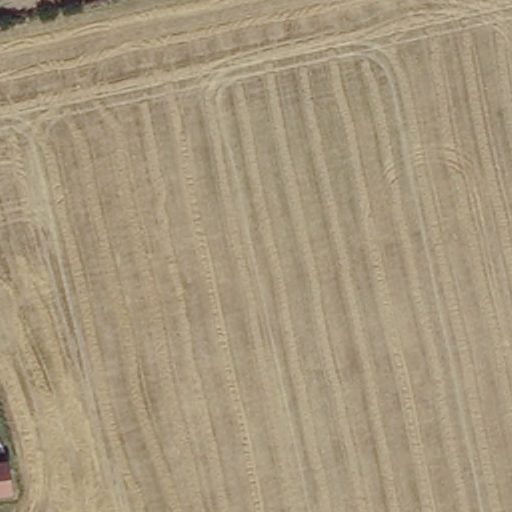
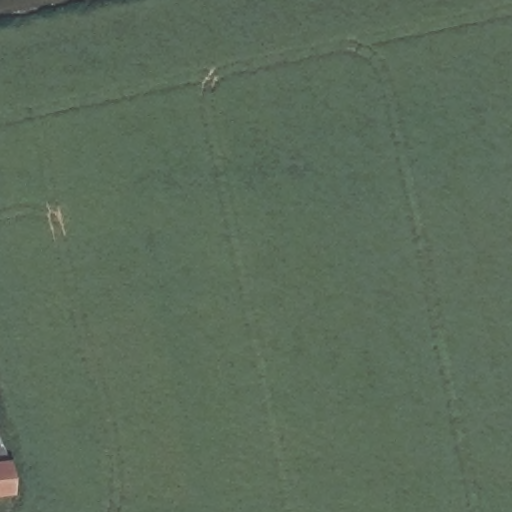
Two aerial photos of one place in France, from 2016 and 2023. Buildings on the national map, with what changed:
unchanged [(3,449),(11,463),(14,497),(0,499),(0,450),(3,449)]

